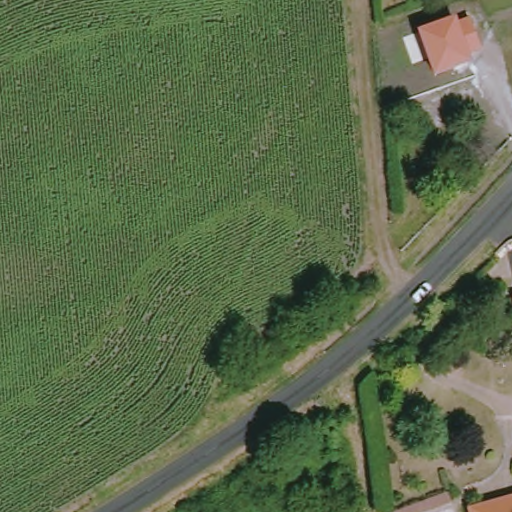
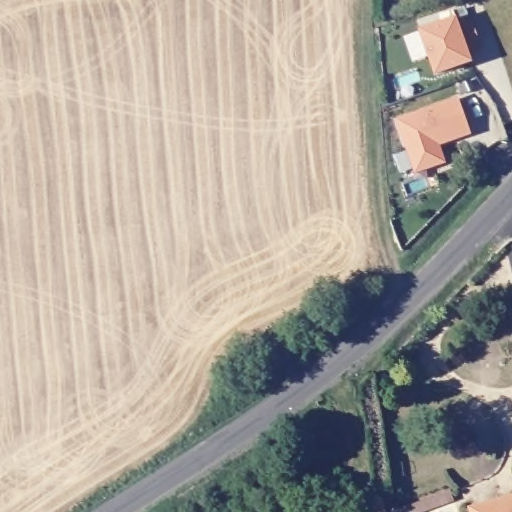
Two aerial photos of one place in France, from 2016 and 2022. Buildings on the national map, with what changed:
unchanged [(456,17),(459,23),(470,18),(481,49),(468,54),(472,63),(434,76),(418,30),(456,17)]
new [(459,99),(470,133),(437,144),(443,161),(415,170),(398,120),(459,99)]
new [(453,501),(422,512),(392,512),(450,491),(453,501)]
unchanged [(512,493),(512,512),(464,512),(462,505),(512,493)]

